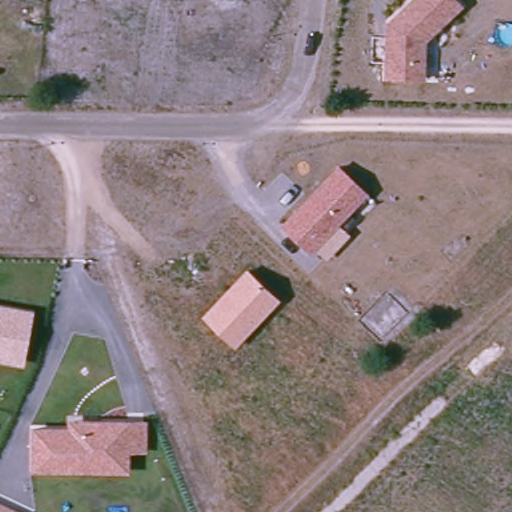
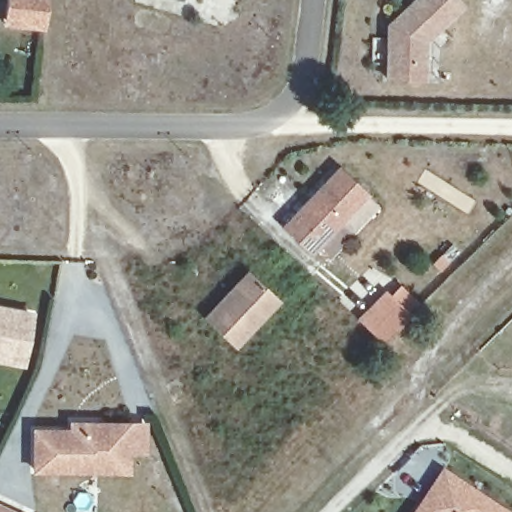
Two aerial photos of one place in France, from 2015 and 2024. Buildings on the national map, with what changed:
new [(7,0),(47,0),(43,29),(4,25),(7,0)]
unchanged [(408,0),(455,0),(458,3),(421,37),(420,74),(383,73),(385,34),(385,21),(408,0)]
unchanged [(335,163),(363,189),(308,248),(281,223),(335,163)]
unchanged [(244,268),(274,296),(231,341),(202,313),(244,268)]
new [(384,289),(389,293),(400,284),(419,303),(409,314),(380,342),(357,317),(384,289)]
unchanged [(23,364),(0,360),(0,302),(33,308),(23,364)]
demolished [(386,372),(368,356),(379,345),(396,362),(386,372)]
unchanged [(31,425),(66,425),(68,418),(147,418),(148,450),(130,452),(130,467),(31,470),(31,425)]
new [(505,512),(410,512),(440,467),(505,512)]
unchanged [(0,512),(0,503),(18,512),(0,512)]

